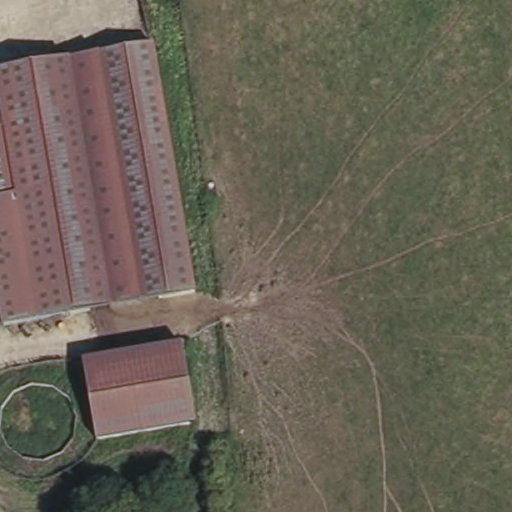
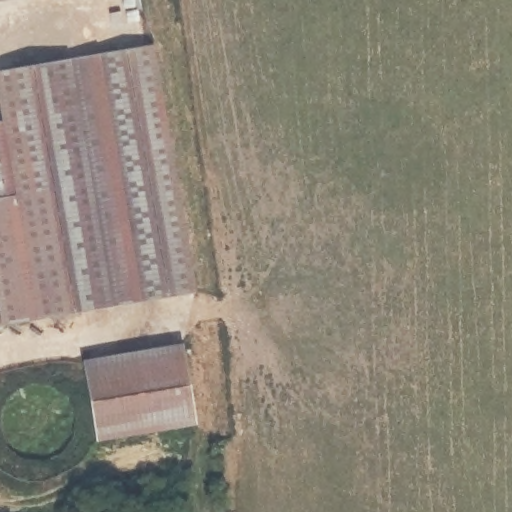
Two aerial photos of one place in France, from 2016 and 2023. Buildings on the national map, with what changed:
unchanged [(0,288),(0,126),(3,126),(0,115),(0,74),(141,40),(180,208),(198,285),(187,287),(9,330),(0,288)]
unchanged [(155,433),(98,442),(83,361),(187,346),(193,381),(201,426),(155,433)]

